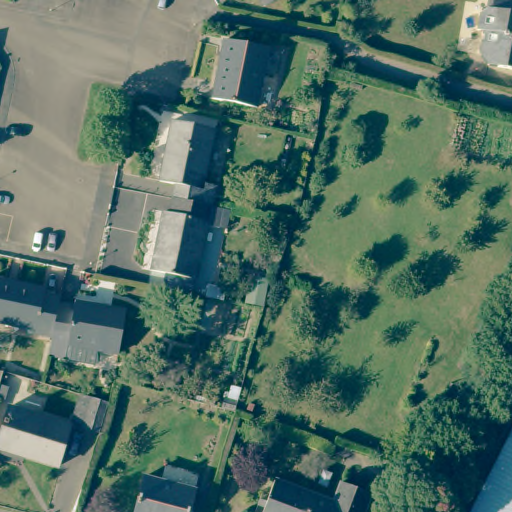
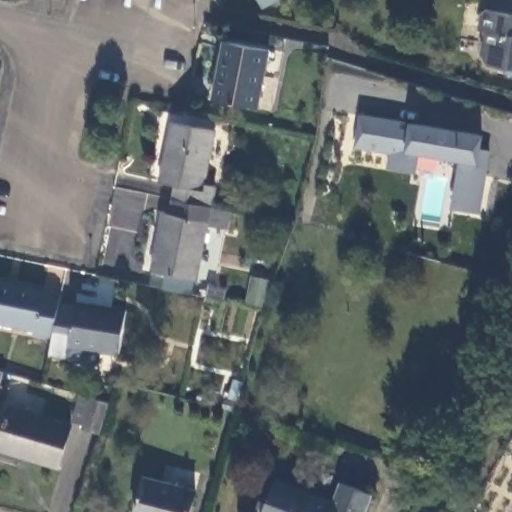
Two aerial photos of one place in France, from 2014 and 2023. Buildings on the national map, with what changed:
unchanged [(262,0),(276,0),(265,6),(262,0)]
unchanged [(485,54),(490,31),(484,29),(487,12),(492,8),(497,9),(499,0),(512,0),(512,69),(493,65),(485,54)]
unchanged [(225,41),(269,50),(257,109),(213,100),(225,41)]
new [(411,121),(483,135),(480,149),(490,151),(479,214),(452,209),(457,160),(436,158),(436,170),(418,167),(417,173),(387,168),(390,153),(354,147),(360,112),(411,121)]
unchanged [(182,184),(166,181),(178,121),(220,130),(209,184),(221,186),(216,207),(179,199),(182,184)]
unchanged [(216,207),(229,209),(225,228),(213,225),(201,280),(157,271),(169,212),(176,214),(179,199),(216,207)]
unchanged [(64,304),(58,336),(39,332),(40,329),(0,321),(0,279),(50,289),(49,294),(66,298),(64,304)]
unchanged [(71,358),(54,354),(58,336),(64,304),(80,307),(81,302),(133,313),(124,356),(105,352),(102,364),(71,358)]
unchanged [(0,401),(0,370),(9,372),(0,401)]
unchanged [(83,432),(84,429),(73,426),(81,399),(92,402),(109,407),(100,438),(83,432)]
unchanged [(451,432),(439,425),(449,408),(461,414),(451,432)]
unchanged [(60,471),(0,454),(0,441),(8,412),(72,430),(60,471)]
demolished [(512,511),(511,512),(471,512),(512,431),(512,511)]
unchanged [(195,490),(190,512),(136,512),(144,477),(195,490)]
unchanged [(321,495),(315,512),(268,512),(280,480),(321,495)]
unchanged [(347,482),(376,493),(370,512),(315,512),(321,495),(339,502),(347,482)]

